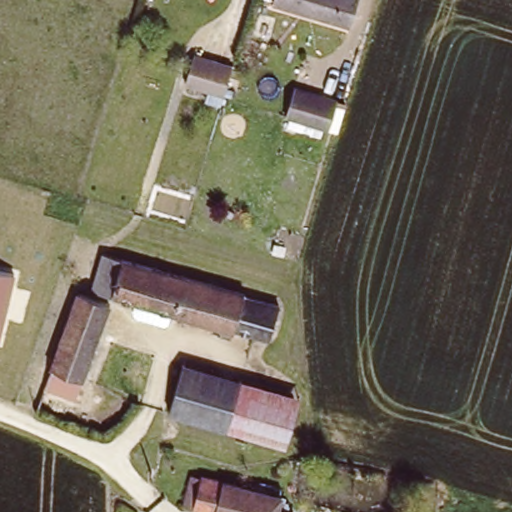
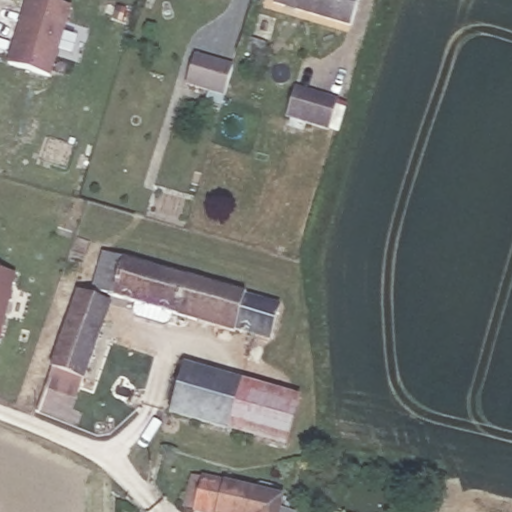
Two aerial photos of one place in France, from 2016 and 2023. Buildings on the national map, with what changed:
new [(48,0),(72,8),(51,78),(8,65),(28,0),(48,0)]
unchanged [(349,0),(341,26),(268,1),(269,0),(349,0)]
unchanged [(224,98),(186,85),(195,59),(232,71),(224,98)]
unchanged [(341,98),(332,127),(294,115),(302,86),(341,98)]
unchanged [(246,293),(282,303),(272,338),(236,327),(235,330),(102,293),(85,288),(96,247),(114,252),(247,289),(246,293)]
unchanged [(0,338),(0,270),(16,274),(0,338)]
unchanged [(56,382),(46,411),(37,408),(73,306),(79,290),(101,299),(111,302),(105,317),(79,391),(56,382)]
unchanged [(302,397),(287,448),(169,414),(185,363),(302,397)]
unchanged [(185,509),(192,477),(282,497),(285,512),(286,512),(196,512),(185,509)]

